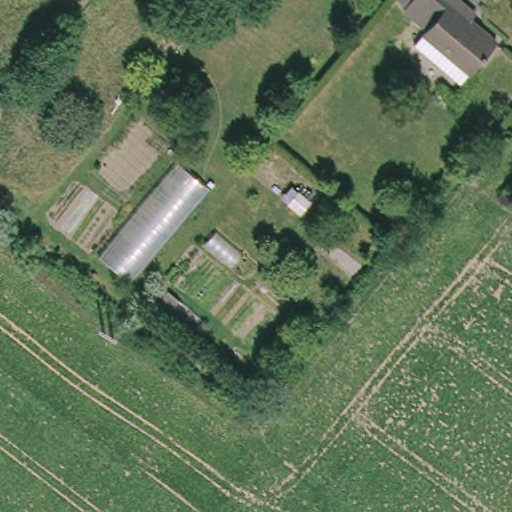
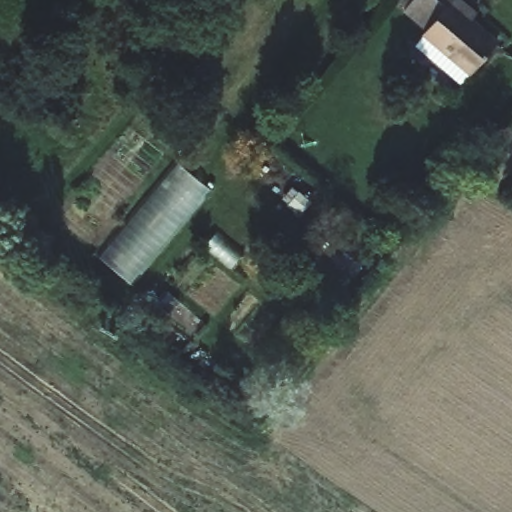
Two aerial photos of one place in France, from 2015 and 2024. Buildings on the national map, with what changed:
unchanged [(473,18),(498,41),(465,79),(414,39),(428,22),(408,4),(411,0),(465,0),(479,12),(473,18)]

